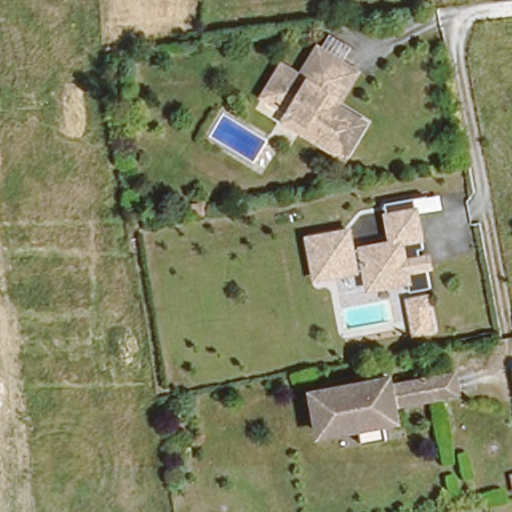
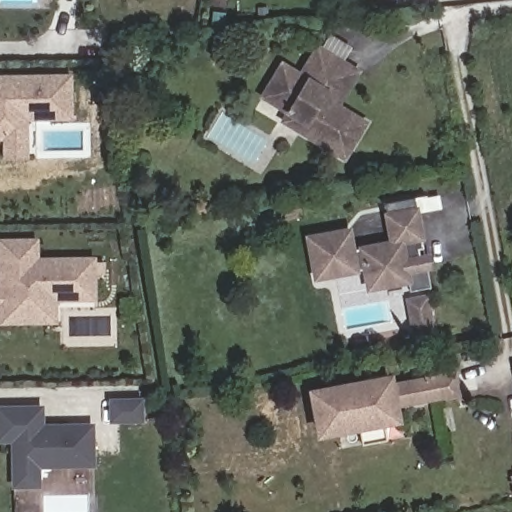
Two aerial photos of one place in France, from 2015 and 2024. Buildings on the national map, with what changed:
unchanged [(263,94),(282,61),(300,72),(318,44),(323,47),(331,34),(349,45),(341,58),(344,60),(359,69),(339,102),(367,120),(344,156),(300,129),(283,119),(288,110),(263,94)]
new [(28,121),(29,159),(2,160),(1,141),(0,141),(0,75),(71,74),(73,121),(28,121)]
unchanged [(425,248),(420,249),(423,261),(428,260),(431,279),(409,283),(408,275),(369,281),(365,262),(316,270),(309,229),(349,221),(353,241),(392,234),(384,195),(414,189),(425,248)]
unchanged [(202,212),(217,210),(218,220),(208,221),(203,222),(202,212)]
new [(59,302),(59,325),(0,325),(0,238),(39,238),(39,257),(94,257),(95,302),(59,302)]
unchanged [(437,303),(441,322),(425,326),(422,306),(437,303)]
unchanged [(363,441),(359,425),(335,430),(319,432),(312,387),(329,384),(391,372),(393,381),(455,370),(459,391),(397,402),(399,418),(384,421),(387,437),(363,441)]
new [(142,402),(143,421),(114,421),(114,402),(142,402)]
new [(40,470),(40,487),(11,488),(10,442),(0,442),(0,405),(44,405),(44,423),(94,422),(94,470),(40,470)]

